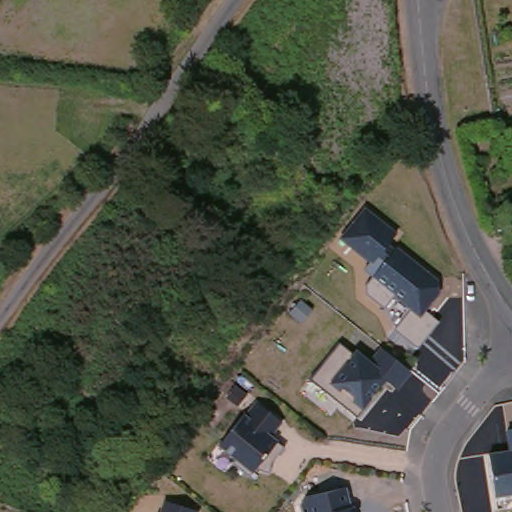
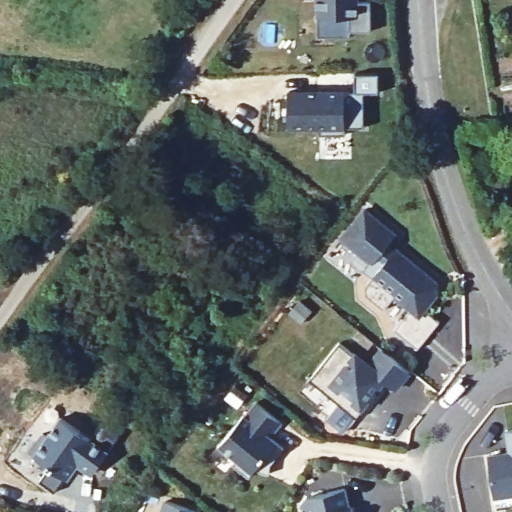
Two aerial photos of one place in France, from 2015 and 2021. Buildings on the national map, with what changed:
new [(317,0),(357,0),(357,6),(370,7),(370,36),(349,36),(349,21),(317,21),(317,0)]
new [(358,95),(358,77),(382,77),(382,96),(367,96),(367,131),(348,131),(349,138),(322,138),(323,131),(292,131),(291,95),(358,95)]
unchanged [(418,316),(361,269),(367,263),(334,237),(361,205),(396,233),(390,244),(442,283),(418,316)]
unchanged [(404,383),(393,374),(379,391),(381,393),(366,412),(319,373),(349,336),(378,360),(392,343),(419,365),(404,383)]
unchanged [(268,438),(274,445),(253,473),(214,444),(252,402),(278,422),(268,438)]
new [(42,437),(47,441),(61,421),(92,442),(103,425),(119,437),(94,475),(78,463),(57,495),(41,485),(51,470),(29,456),(42,437)]
unchanged [(496,501),(487,453),(504,450),(501,428),(512,428),(512,497),(496,501)]
unchanged [(346,489),(349,507),(354,506),(356,512),(302,512),(299,500),(346,489)]
unchanged [(196,510),(195,512),(161,512),(164,500),(196,510)]

